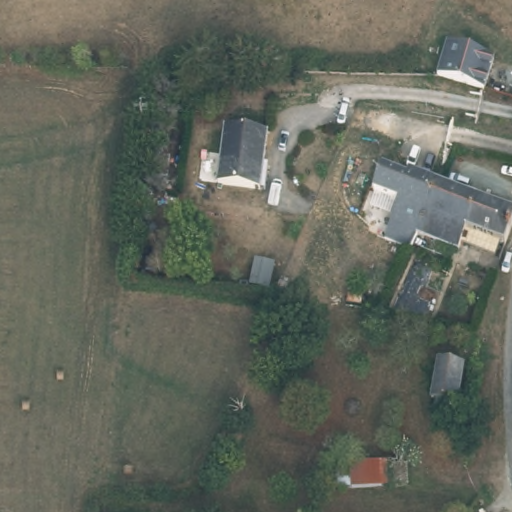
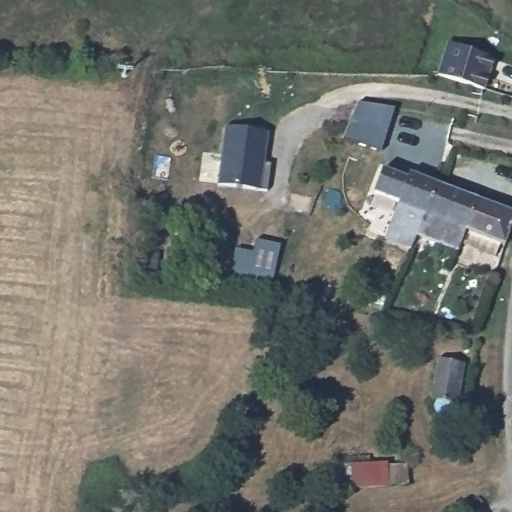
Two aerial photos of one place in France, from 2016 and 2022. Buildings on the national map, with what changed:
unchanged [(454,77),(460,48),(485,57),(477,83),(454,77)]
new [(357,102),(395,108),(381,152),(342,139),(357,102)]
unchanged [(262,159),(269,161),(265,187),(216,179),(227,120),(268,127),(262,159)]
unchanged [(389,221),(407,175),(436,186),(417,233),(389,221)]
unchanged [(503,242),(498,240),(491,254),(455,239),(452,248),(417,233),(436,186),(512,216),(506,233),(503,242)]
demolished [(346,284),(326,272),(343,241),(364,254),(346,284)]
unchanged [(453,402),(452,407),(451,410),(448,413),(444,415),(439,415),(436,414),(434,409),(434,403),(435,397),(432,397),(441,356),(466,362),(458,403),(453,402)]
unchanged [(408,460),(412,485),(337,489),(336,463),(408,460)]

